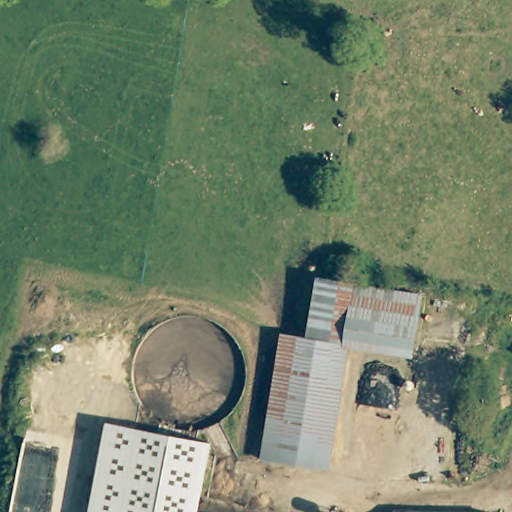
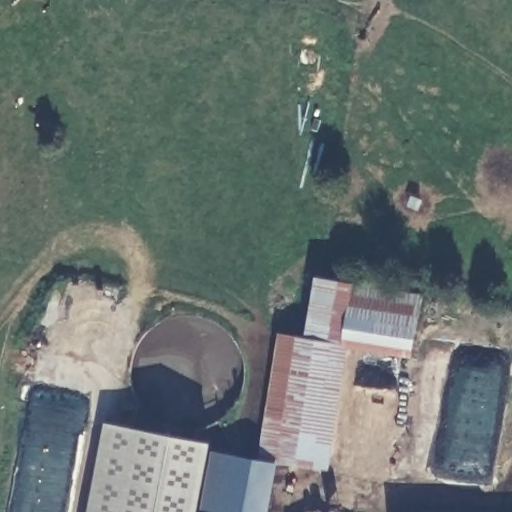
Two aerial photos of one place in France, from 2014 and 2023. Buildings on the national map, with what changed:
unchanged [(341,342),(306,338),(316,276),(355,282),(345,343),(341,342)]
unchanged [(345,343),(355,282),(422,292),(411,354),(345,343)]
unchanged [(341,342),(328,466),(270,460),(282,336),(341,342)]
unchanged [(106,422),(210,441),(197,512),(88,512),(106,422)]
new [(214,450),(270,460),(262,512),(202,512),(214,450)]

